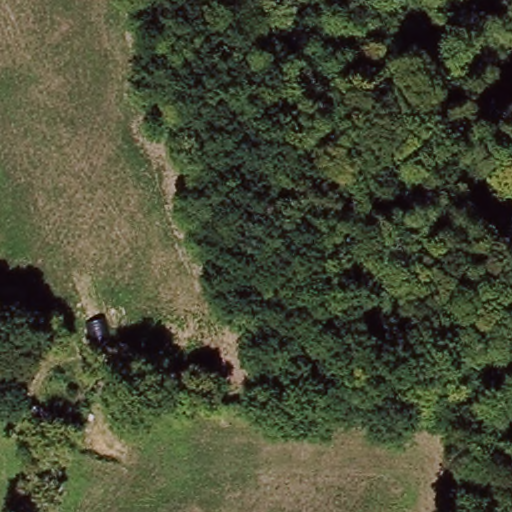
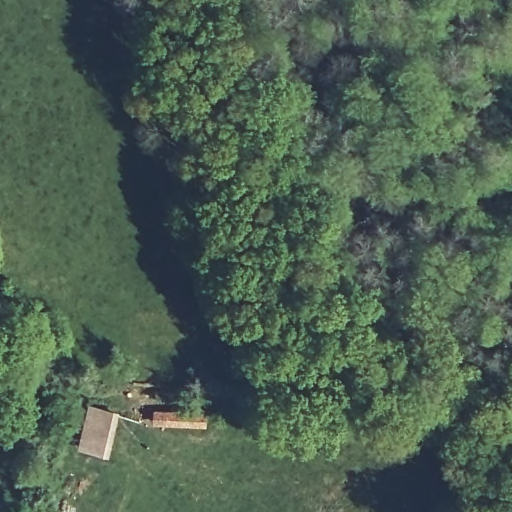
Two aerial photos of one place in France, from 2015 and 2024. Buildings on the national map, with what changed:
new [(121,412),(109,458),(77,450),(89,404),(121,412)]

